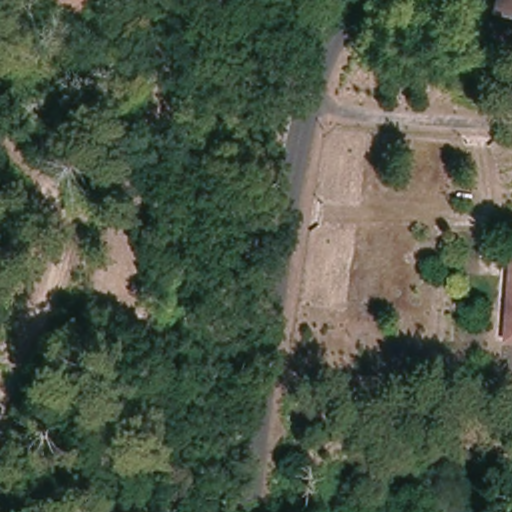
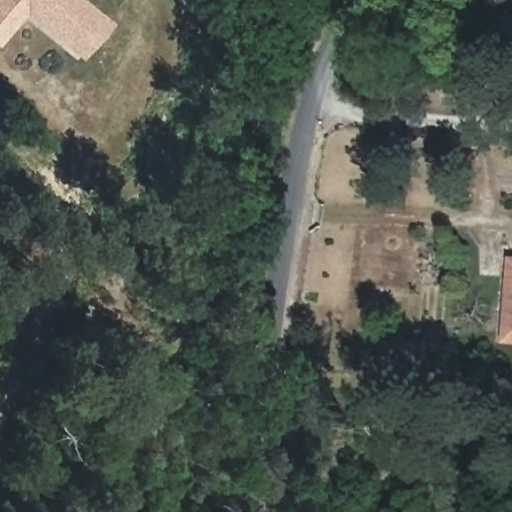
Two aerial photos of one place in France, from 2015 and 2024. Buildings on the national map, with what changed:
new [(79,58),(24,13),(0,45),(0,0),(86,0),(111,20),(79,58)]
demolished [(49,0),(90,0),(75,18),(49,0)]
unchanged [(494,10),(497,0),(512,0),(512,14),(494,10)]

